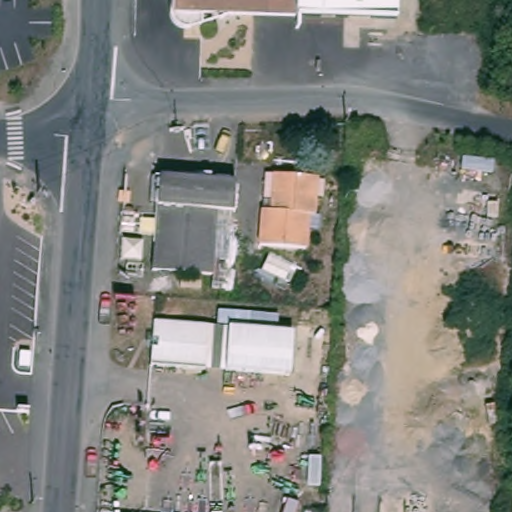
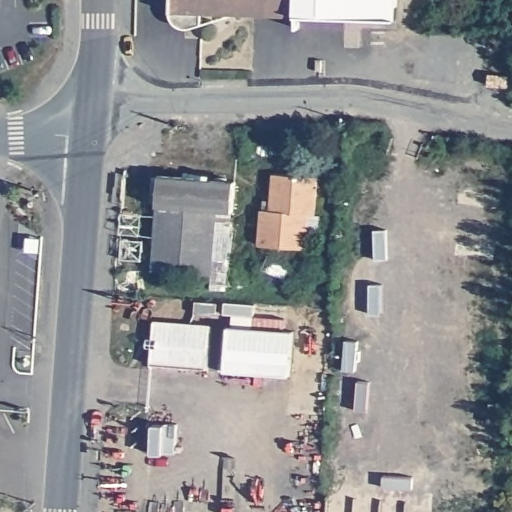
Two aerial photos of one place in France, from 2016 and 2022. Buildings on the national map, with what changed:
unchanged [(301,10),(300,17),(204,13),(203,26),(195,27),(185,27),(180,25),(174,20),(175,0),(301,0),(301,10)]
unchanged [(399,18),(301,10),(301,0),(400,0),(399,18)]
unchanged [(318,229),(308,228),(307,248),(258,244),(260,210),(261,202),(270,202),(272,173),(317,176),(314,214),(319,214),(318,229)]
unchanged [(216,274),(157,269),(162,192),(155,192),(156,174),(163,174),(223,179),(216,274)]
unchanged [(213,326),(210,369),(157,365),(160,322),(213,326)]
unchanged [(298,332),(295,375),(230,370),(234,328),(298,332)]

